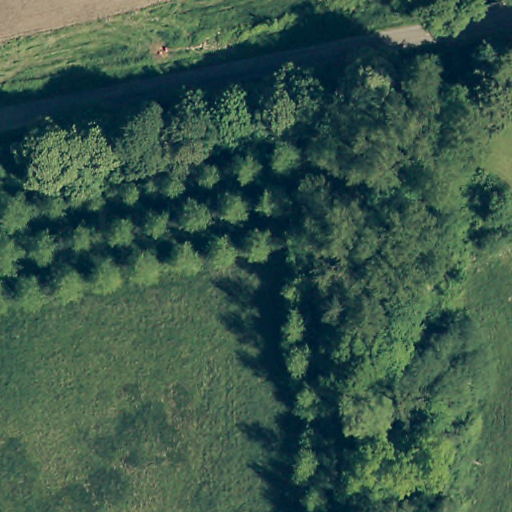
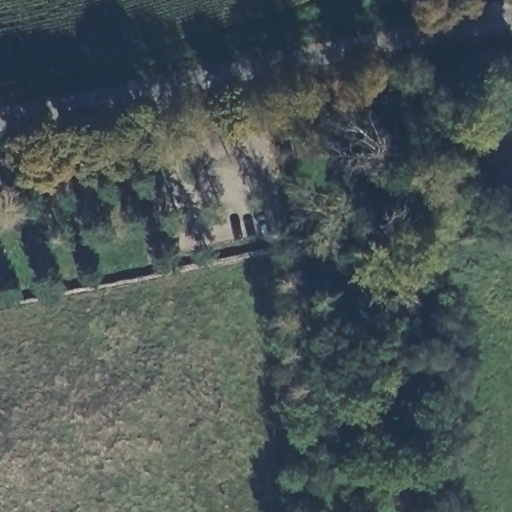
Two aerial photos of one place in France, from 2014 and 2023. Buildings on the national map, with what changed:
[]

